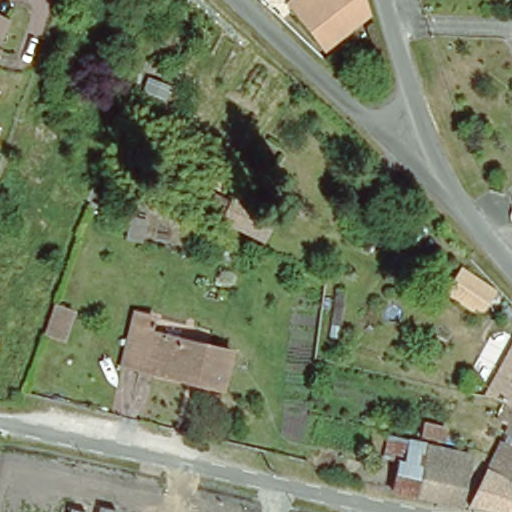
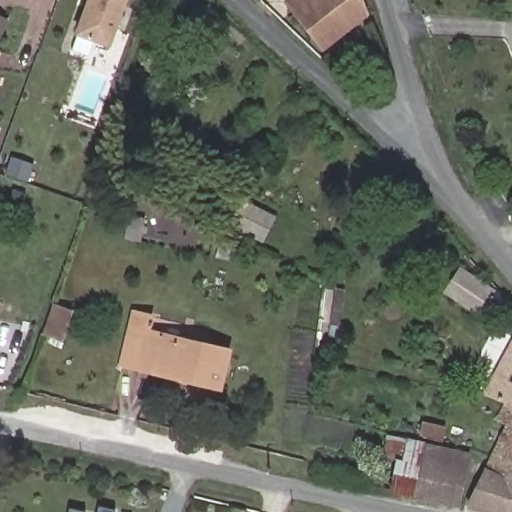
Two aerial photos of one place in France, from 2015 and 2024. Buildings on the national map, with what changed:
new [(128,0),(110,49),(75,35),(87,0),(128,0)]
unchanged [(289,1),(291,0),(365,0),(369,11),(324,47),(289,1)]
unchanged [(5,21),(0,32),(0,19),(5,21)]
new [(147,76),(171,85),(164,105),(140,95),(147,76)]
unchanged [(269,224),(261,240),(219,217),(227,201),(269,224)]
unchanged [(490,290),(476,311),(454,296),(469,275),(490,290)]
unchanged [(57,340),(36,332),(46,303),(47,301),(47,300),(68,308),(57,340)]
unchanged [(217,376),(202,372),(204,368),(183,362),(181,367),(139,356),(122,352),(131,317),(134,302),(152,306),(148,321),(227,340),(217,376)]
unchanged [(489,395),(483,393),(512,339),(512,405),(505,402),(489,395)]
unchanged [(512,442),(501,437),(508,421),(499,416),(505,402),(512,405),(512,442)]
unchanged [(396,459),(402,460),(407,437),(426,442),(414,495),(389,490),(396,459)]
unchanged [(457,505),(414,495),(426,442),(468,452),(457,505)]
unchanged [(491,456),(510,465),(512,461),(512,483),(485,470),(491,456)]
unchanged [(485,470),(512,483),(512,512),(491,512),(467,507),(485,470)]
unchanged [(67,506),(86,511),(86,512),(66,512),(67,506)]

